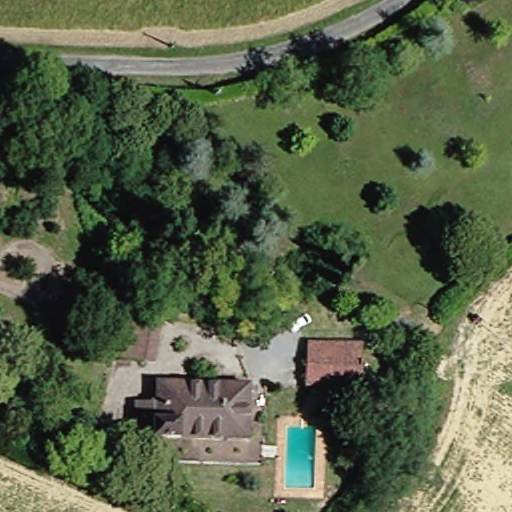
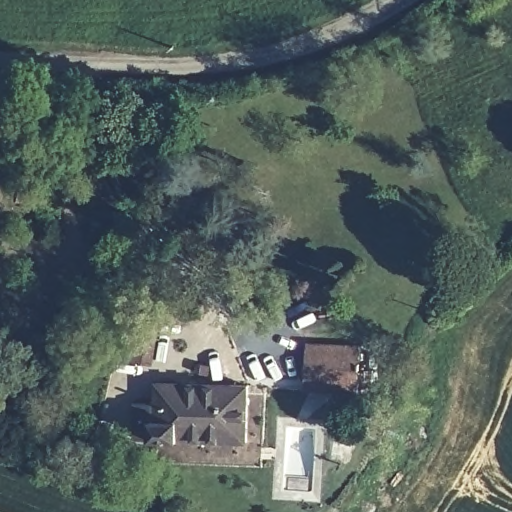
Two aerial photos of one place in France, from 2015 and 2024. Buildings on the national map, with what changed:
unchanged [(152,364),(109,355),(116,307),(159,317),(152,364)]
unchanged [(302,388),(305,342),(362,346),(359,391),(302,388)]
unchanged [(210,365),(210,375),(197,376),(197,365),(210,365)]
unchanged [(153,400),(154,384),(247,383),(245,434),(136,433),(137,400),(153,400)]

